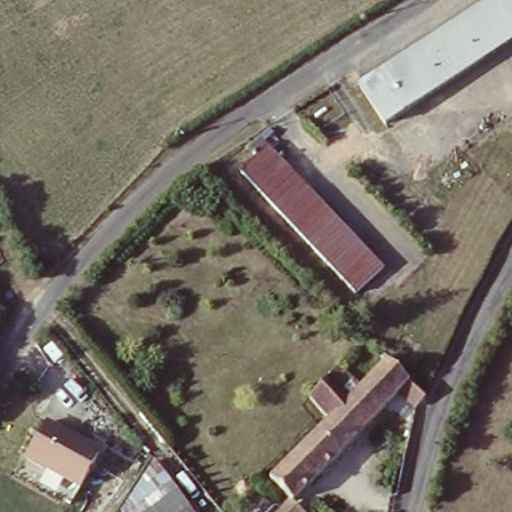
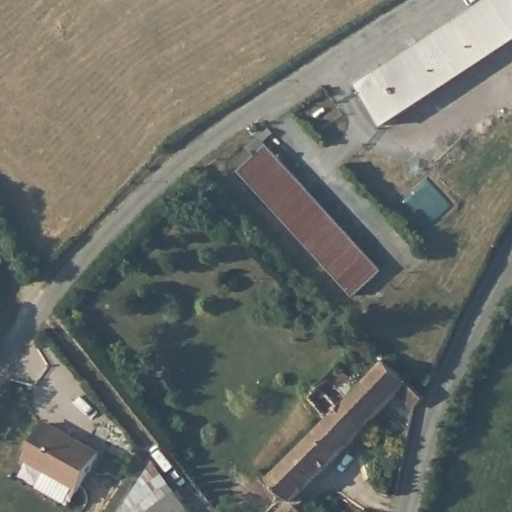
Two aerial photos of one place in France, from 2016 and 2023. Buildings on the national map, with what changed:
unchanged [(512,0),(512,39),(489,1),(491,0),(512,0)]
unchanged [(478,65),(453,24),(489,1),(512,39),(512,43),(478,65)]
unchanged [(453,24),(478,65),(381,126),(355,85),(453,24)]
unchanged [(264,150),(381,273),(353,300),(236,176),(264,150)]
unchanged [(398,396),(346,448),(287,510),(289,512),(281,512),(285,509),(262,485),(324,425),(303,403),(333,373),(353,392),(384,361),(416,395),(421,401),(412,410),(398,396)]
unchanged [(80,488),(26,460),(45,424),(99,452),(80,488)]
unchanged [(120,510),(155,458),(196,512),(122,512),(120,510)]

